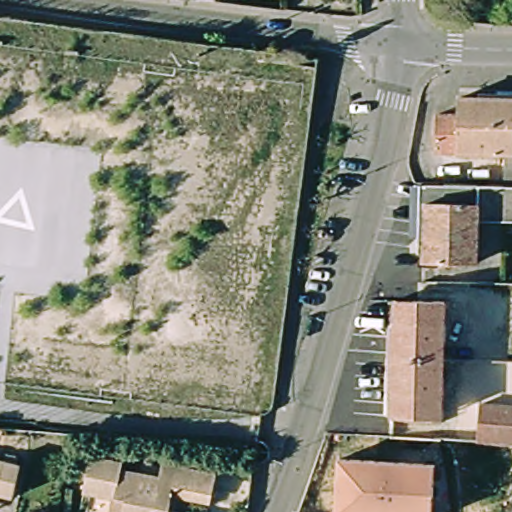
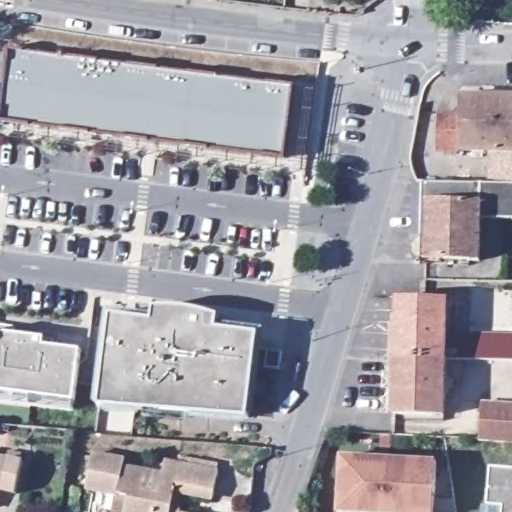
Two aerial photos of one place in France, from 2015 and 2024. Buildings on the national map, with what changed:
new [(285,159),(1,120),(12,50),(294,87),(285,159)]
unchanged [(509,156),(440,153),(443,115),(464,115),(465,98),(512,100),(512,185),(508,185),(509,156)]
unchanged [(429,181),(442,181),(484,184),(508,185),(512,185),(512,222),(482,220),(480,262),(427,259),(427,253),(425,253),(425,242),(423,242),(426,181),(426,180),(429,181)]
unchanged [(400,295),(452,296),(450,351),(399,350),(400,295)]
new [(249,417),(100,405),(111,315),(151,321),(153,308),(186,307),(218,316),(216,329),(258,333),(249,417)]
new [(73,400),(0,391),(0,324),(11,325),(7,333),(45,338),(43,347),(79,351),(73,400)]
unchanged [(450,351),(448,416),(397,415),(399,350),(450,351)]
new [(276,370),(262,368),(264,351),(279,352),(276,370)]
unchanged [(512,405),(512,444),(486,441),(487,405),(512,405)]
unchanged [(9,457),(11,450),(23,452),(22,460),(27,460),(21,492),(3,489),(2,497),(0,503),(0,455),(9,457)]
unchanged [(91,487),(97,452),(129,459),(128,465),(164,472),(167,458),(221,468),(215,495),(189,490),(187,505),(185,512),(117,512),(121,493),(91,487)]
unchanged [(438,512),(384,512),(343,509),(347,452),(442,460),(438,512)]
new [(489,507),(491,469),(512,471),(512,512),(503,512),(504,508),(489,507)]
demolished [(512,512),(508,512),(507,511),(512,511),(512,512)]

